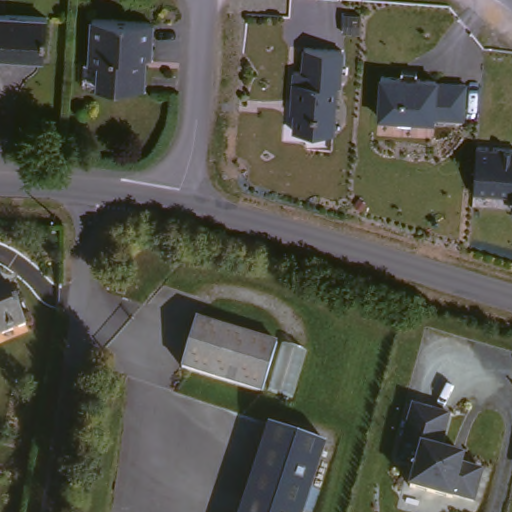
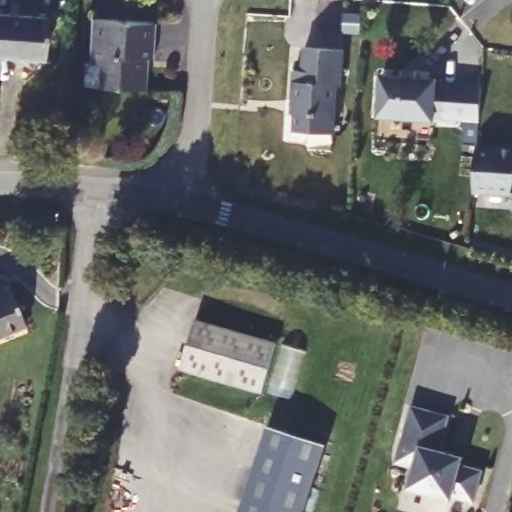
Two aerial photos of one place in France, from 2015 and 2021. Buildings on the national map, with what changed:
unchanged [(52,53),(0,51),(0,9),(54,10),(52,53)]
unchanged [(160,23),(159,56),(152,56),(151,87),(89,84),(90,63),(94,62),(96,18),(160,23)]
unchanged [(346,47),(342,83),(339,82),(336,131),(297,128),(299,97),(296,97),(298,67),(307,68),(308,44),(346,47)]
unchanged [(410,67),(425,68),(424,75),(444,77),(444,79),(474,81),(472,116),(442,114),(442,117),(387,113),(390,73),(409,74),(410,67)]
unchanged [(512,146),(512,193),(476,190),(478,153),(480,143),(512,146)]
unchanged [(32,320),(0,337),(0,286),(13,279),(32,320)]
unchanged [(199,322),(281,348),(264,398),(182,371),(199,322)]
unchanged [(406,439),(415,403),(452,413),(442,448),(466,454),(464,462),(486,467),(477,498),(456,493),(455,496),(413,485),(418,464),(401,459),(406,439)]
unchanged [(305,512),(239,512),(268,423),(328,441),(305,512)]

